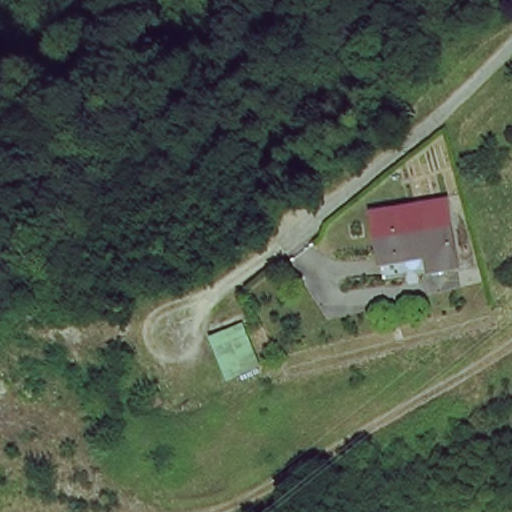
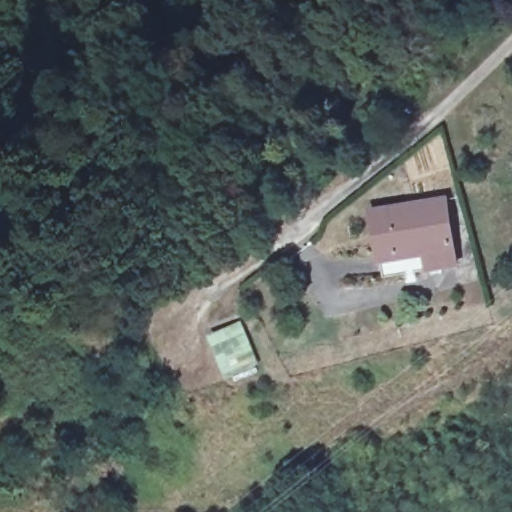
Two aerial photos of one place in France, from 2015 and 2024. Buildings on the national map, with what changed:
unchanged [(450,195),(461,264),(424,272),(420,256),(378,263),(372,210),(450,195)]
unchanged [(260,363),(228,377),(211,335),(242,322),(260,363)]

